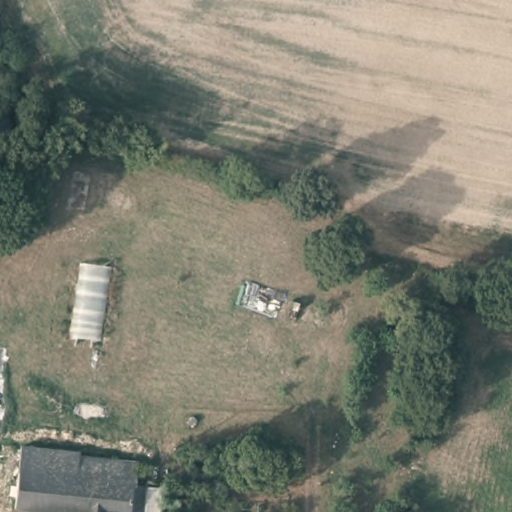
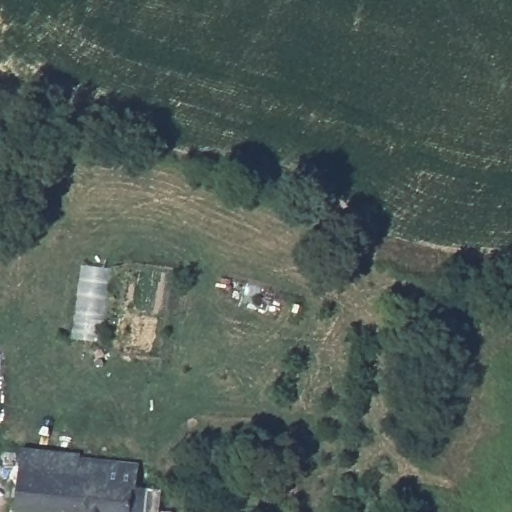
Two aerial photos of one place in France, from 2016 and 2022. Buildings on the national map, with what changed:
unchanged [(84,461),(139,465),(137,488),(147,489),(145,512),(14,512),(23,452),(84,457),(84,461)]

